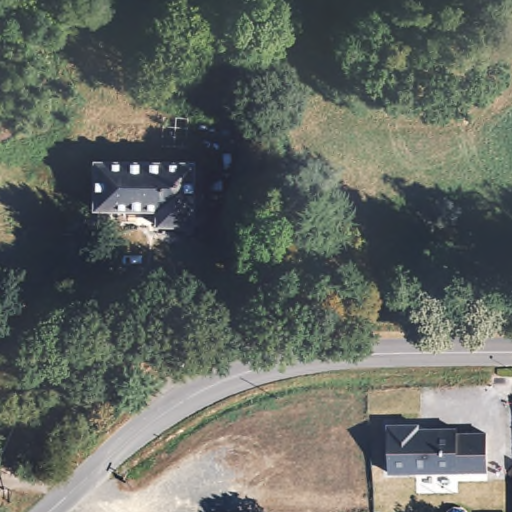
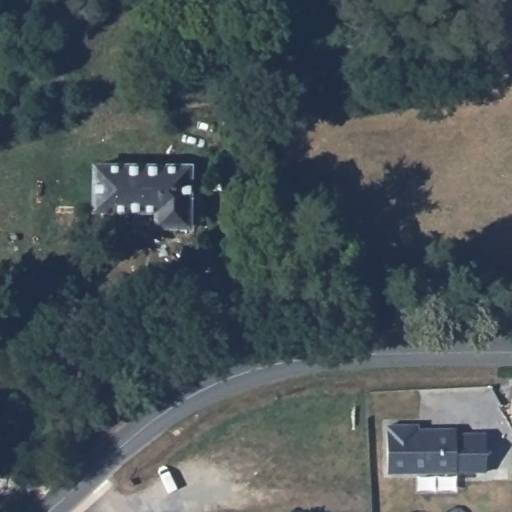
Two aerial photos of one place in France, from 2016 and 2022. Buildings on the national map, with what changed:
unchanged [(195,171),(194,231),(146,231),(146,216),(85,216),(86,170),(195,171)]
unchanged [(392,468),(391,421),(422,421),(422,431),(427,431),(431,425),(457,425),(457,430),(487,430),(487,468),(395,469),(392,469),(392,468)]

